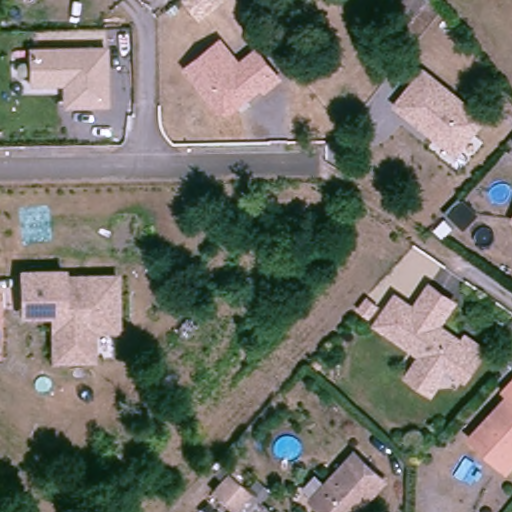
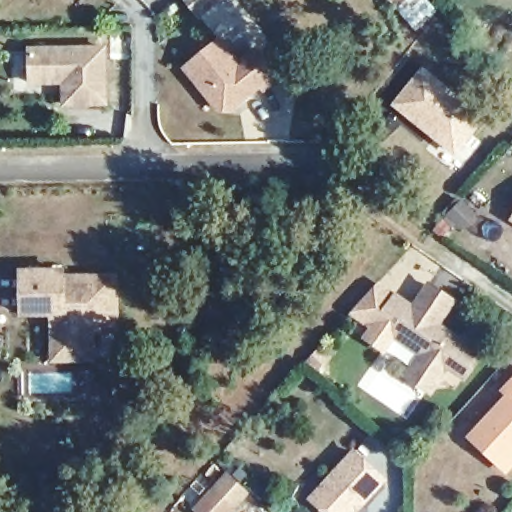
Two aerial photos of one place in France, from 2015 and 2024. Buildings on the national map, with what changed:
unchanged [(201,18),(187,0),(222,0),(201,18)]
unchanged [(221,43),(240,67),(258,53),(279,79),(265,90),(262,86),(230,112),(220,110),(187,70),(221,43)]
unchanged [(32,81),(31,48),(105,47),(106,102),(65,103),(65,81),(53,81),(32,81)]
unchanged [(395,109),(423,75),(482,124),(455,158),(430,137),(422,131),(395,109)]
unchanged [(25,273),(66,272),(67,278),(119,277),(120,328),(99,328),(94,334),(94,360),(58,360),(57,322),(67,322),(67,313),(26,314),(25,273)]
unchanged [(404,378),(412,365),(418,357),(373,326),(391,298),(410,311),(426,288),(449,304),(433,327),(448,337),(458,344),(462,340),(479,351),(461,379),(445,368),(435,381),(427,394),(404,378)]
unchanged [(377,307),(367,318),(356,308),(364,299),(366,297),(377,307)]
unchanged [(498,459),(472,434),(511,392),(505,386),(512,378),(512,461),(507,467),(498,459)]
unchanged [(337,512),(317,494),(360,449),(389,476),(356,512),(337,512)]
unchanged [(248,491),(235,506),(216,489),(230,475),(248,491)]

